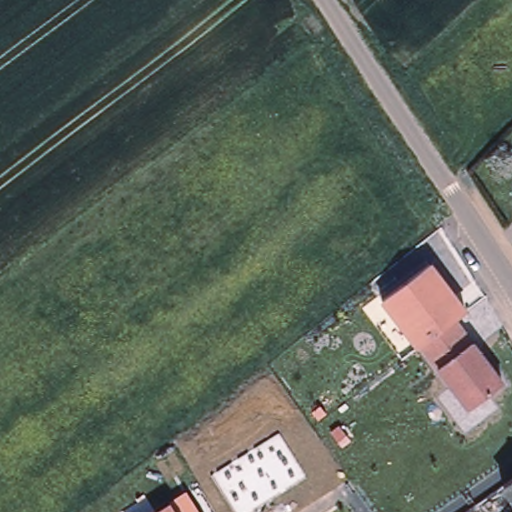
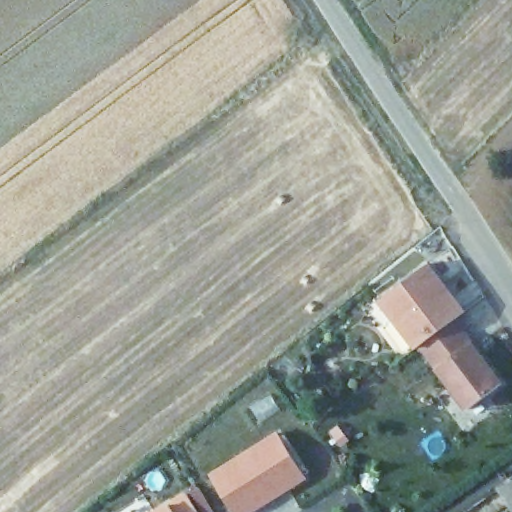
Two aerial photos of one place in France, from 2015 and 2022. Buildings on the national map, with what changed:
unchanged [(430,263),(469,311),(458,321),(506,382),(467,412),(381,301),(430,263)]
new [(255,512),(233,512),(208,474),(277,431),(308,479),(255,512)]
unchanged [(512,479),(512,507),(499,489),(512,479)]
new [(176,512),(169,502),(196,484),(215,512),(176,512)]
unchanged [(154,512),(169,502),(176,512),(154,512)]

